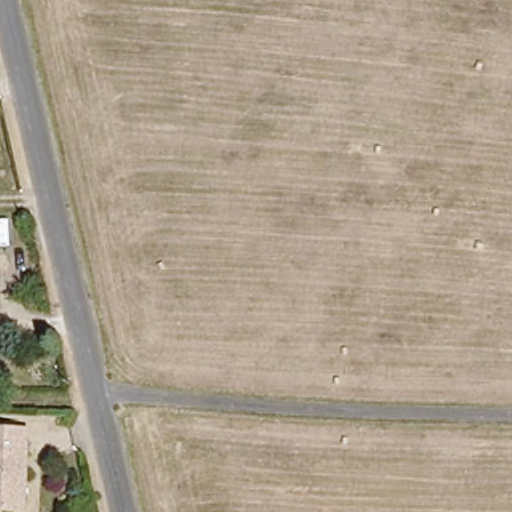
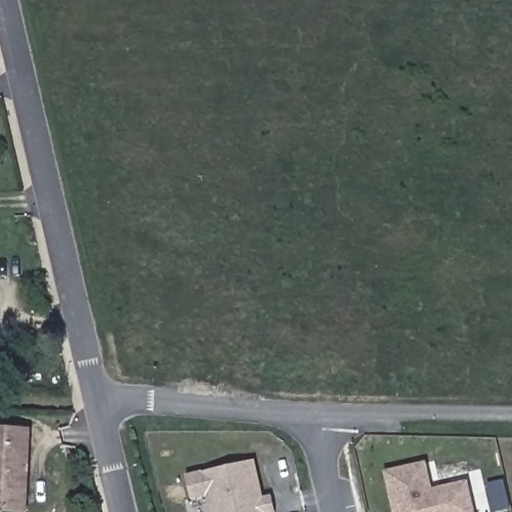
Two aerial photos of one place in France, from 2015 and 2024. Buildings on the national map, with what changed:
unchanged [(28,429),(26,507),(0,506),(0,428),(28,429)]
new [(253,461),(262,499),(270,496),(274,512),(209,512),(206,497),(190,501),(185,477),(253,461)]
new [(425,464),(431,490),(466,482),(473,512),(395,512),(386,472),(425,464)]

